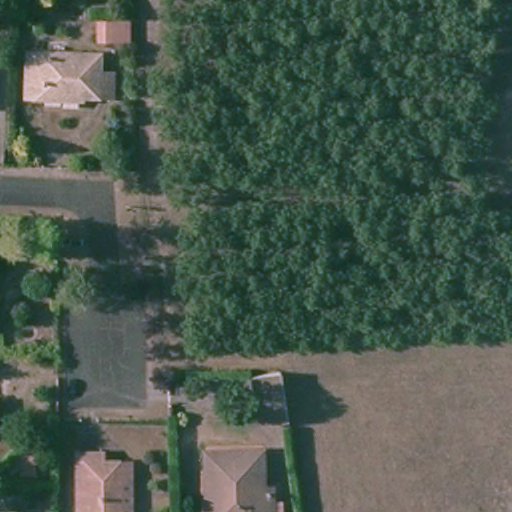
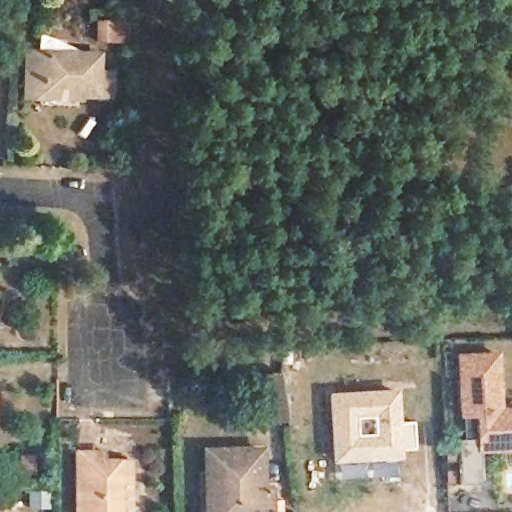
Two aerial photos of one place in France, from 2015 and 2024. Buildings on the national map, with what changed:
unchanged [(102,33),(102,12),(116,13),(115,33),(102,33)]
unchanged [(41,101),(25,101),(25,57),(96,58),(96,74),(112,75),(111,97),(95,96),(78,95),(78,102),(41,101)]
new [(461,483),(458,440),(476,439),(475,416),(461,416),(456,354),(499,352),(502,408),(512,408),(512,450),(481,452),(483,482),(461,483)]
unchanged [(259,410),(252,375),(279,368),(287,407),(288,416),(261,420),(259,410)]
new [(328,393),(400,389),(400,422),(412,421),(414,447),(400,448),(400,458),(333,461),(328,393)]
unchanged [(205,456),(262,455),(264,491),(273,491),(274,512),(208,512),(207,510),(206,476),(205,456)]
unchanged [(129,484),(129,509),(125,510),(125,512),(79,512),(78,486),(78,461),(101,461),(101,469),(129,469),(129,484)]

